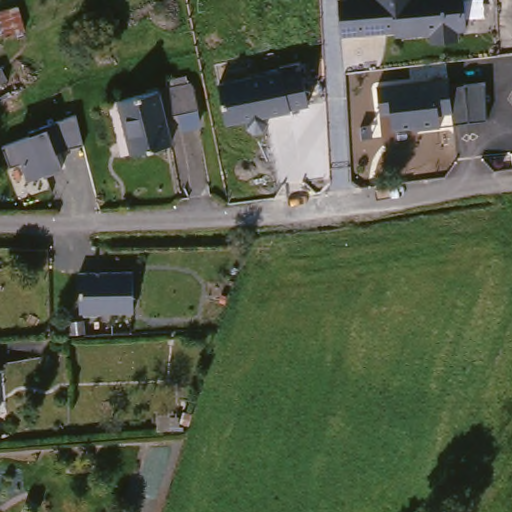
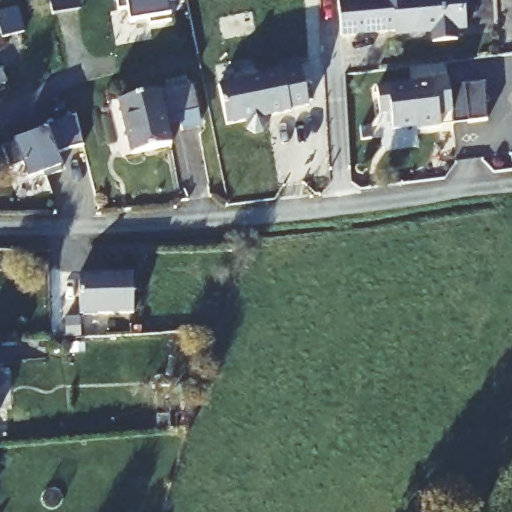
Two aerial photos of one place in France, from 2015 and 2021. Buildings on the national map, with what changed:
new [(152,22),(151,17),(132,21),(130,6),(120,8),(119,0),(170,0),(174,18),(152,22)]
unchanged [(334,0),(459,0),(460,9),(461,32),(451,33),(451,44),(427,45),(427,34),(415,35),(415,29),(336,33),(335,28),(334,0)]
unchanged [(27,8),(29,34),(29,35),(5,36),(4,9),(27,8)]
unchanged [(299,61),(307,103),(289,107),(290,110),(265,115),(267,123),(262,130),(254,131),(247,127),(245,119),(225,123),(217,83),(280,70),(280,64),(299,61)]
unchanged [(14,80),(0,87),(0,70),(6,67),(14,80)]
unchanged [(480,76),(485,100),(443,105),(436,114),(437,126),(414,129),(414,126),(390,128),(388,110),(378,111),(375,85),(480,76)]
unchanged [(175,129),(177,139),(138,144),(129,103),(127,93),(200,81),(206,125),(175,129)]
unchanged [(140,158),(120,163),(107,110),(129,103),(138,144),(140,158)]
unchanged [(84,142),(55,150),(61,167),(28,180),(22,161),(9,164),(2,143),(14,139),(30,134),(29,130),(75,114),(84,142)]
unchanged [(131,273),(132,313),(78,315),(76,275),(131,273)]

